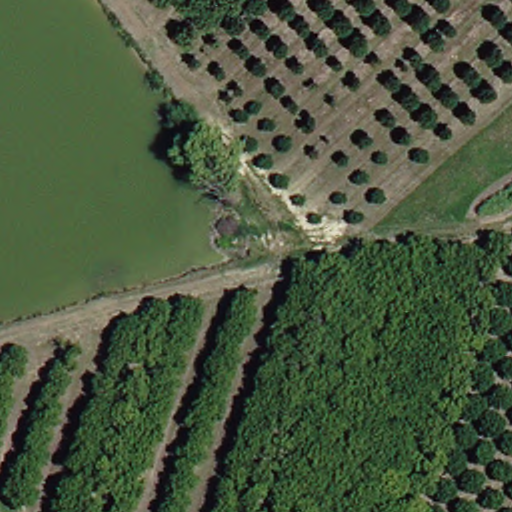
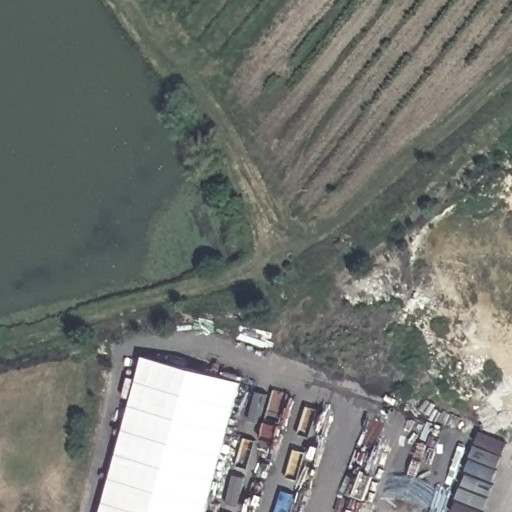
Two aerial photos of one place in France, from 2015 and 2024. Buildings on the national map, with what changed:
new [(205,512),(99,512),(140,360),(239,385),(205,512)]

